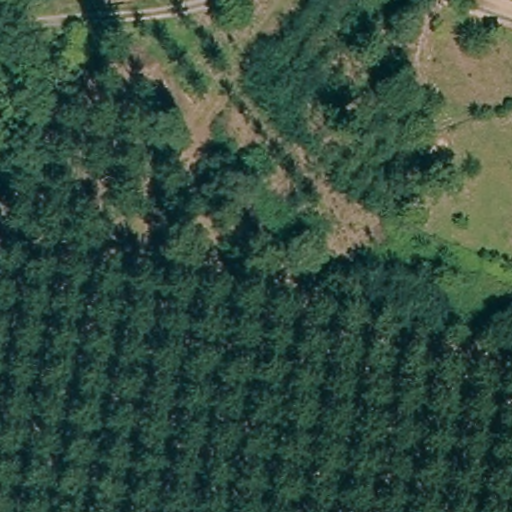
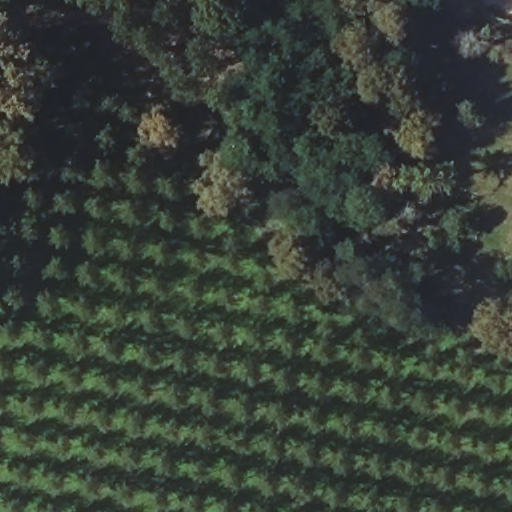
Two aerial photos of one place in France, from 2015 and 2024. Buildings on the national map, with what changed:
[]

